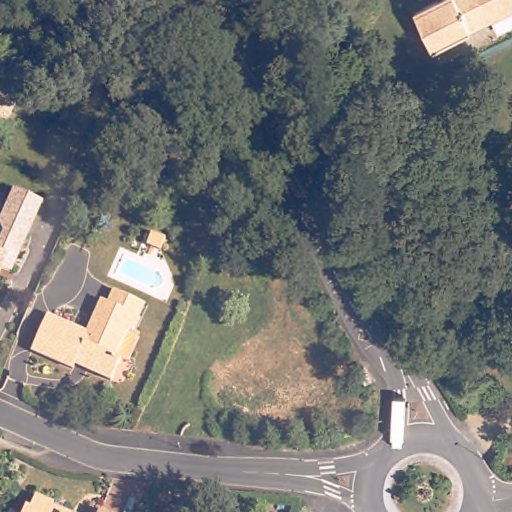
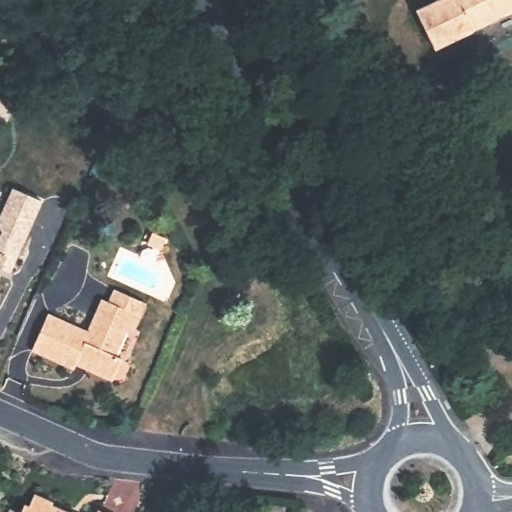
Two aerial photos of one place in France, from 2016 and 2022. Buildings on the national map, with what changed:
unchanged [(512,11),(429,52),(410,17),(445,0),(512,0),(512,11)]
unchanged [(3,222),(0,219),(0,212),(14,181),(42,195),(10,266),(4,262),(0,271),(0,229),(3,222)]
unchanged [(168,237),(163,250),(149,242),(154,231),(168,237)]
unchanged [(125,335),(115,356),(122,360),(110,382),(82,371),(84,365),(75,362),(72,368),(32,352),(47,315),(85,332),(100,300),(109,303),(116,287),(145,302),(139,316),(130,335),(125,335)]

